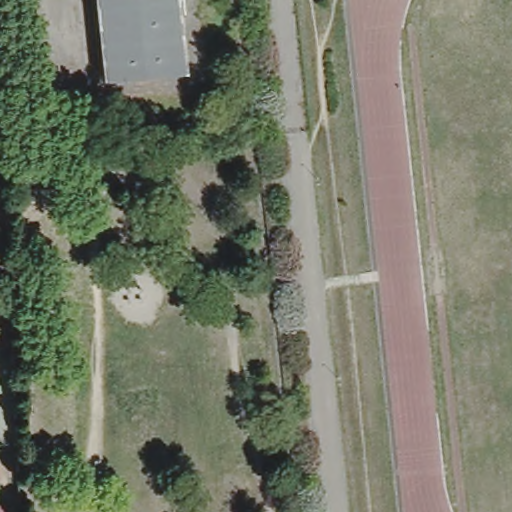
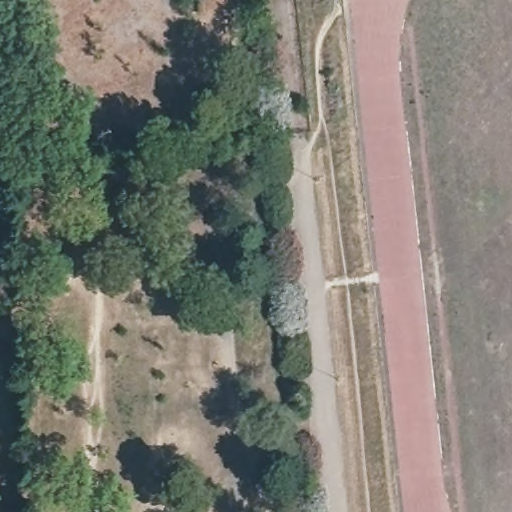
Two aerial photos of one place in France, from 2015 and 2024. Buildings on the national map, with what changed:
demolished [(185,69),(106,77),(99,0),(178,0),(185,69)]

